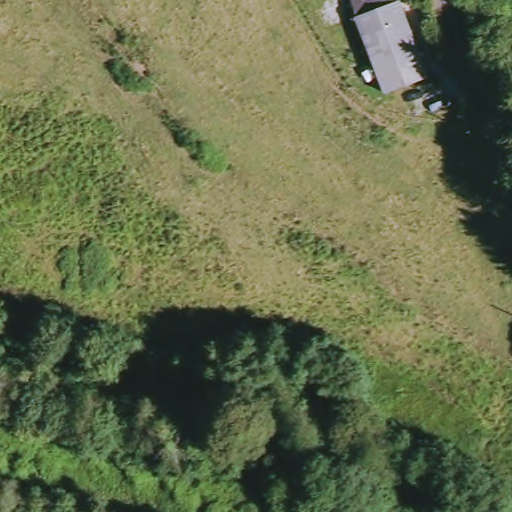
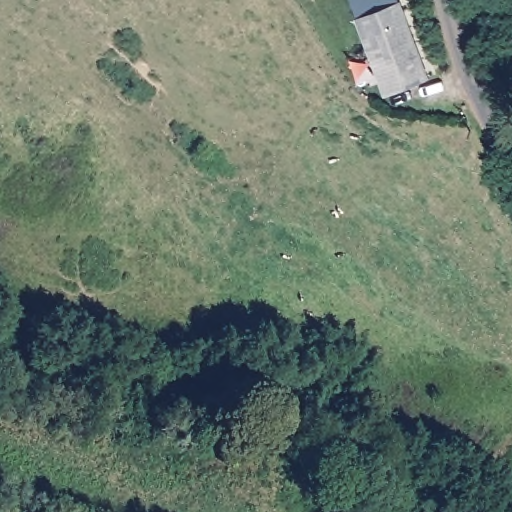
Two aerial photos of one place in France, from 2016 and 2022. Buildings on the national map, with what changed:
unchanged [(360,17),(355,0),(400,0),(402,4),(360,17)]
unchanged [(406,3),(426,82),(384,93),(360,17),(402,4),(406,3)]

